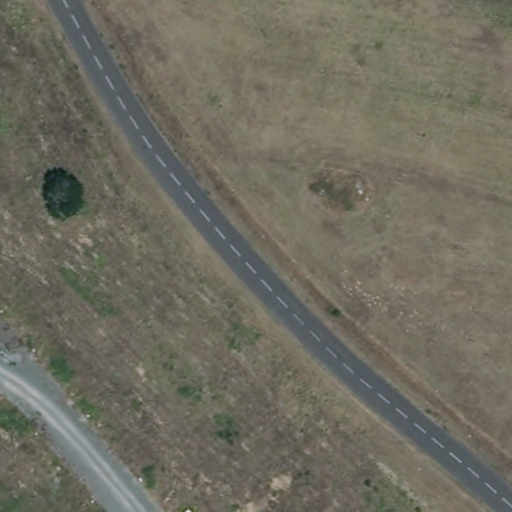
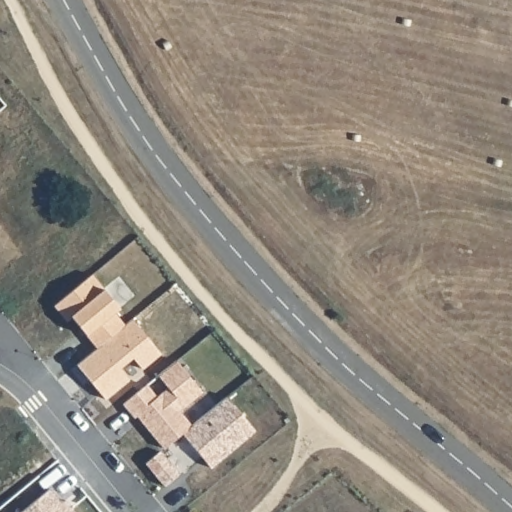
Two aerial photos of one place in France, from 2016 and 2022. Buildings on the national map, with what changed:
new [(95,345),(85,334),(71,315),(66,320),(53,304),(91,273),(104,288),(119,306),(114,311),(124,322),(95,345)]
new [(183,429),(163,445),(136,415),(133,417),(123,403),(146,383),(157,396),(169,386),(158,375),(176,360),(202,391),(179,410),(192,424),(224,395),(254,430),(209,465),(183,429)]
new [(60,505),(64,501),(70,510),(73,512),(23,512),(49,490),(60,505)]

